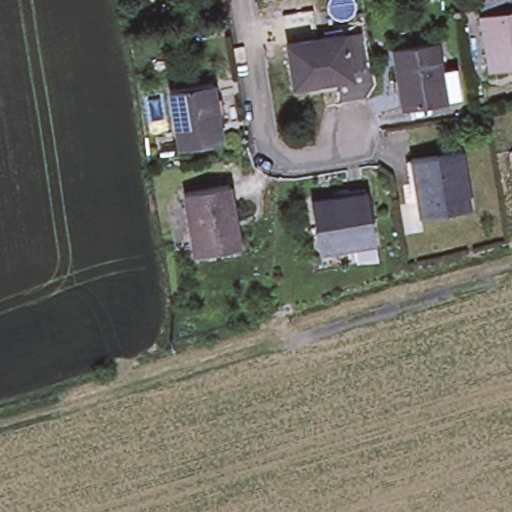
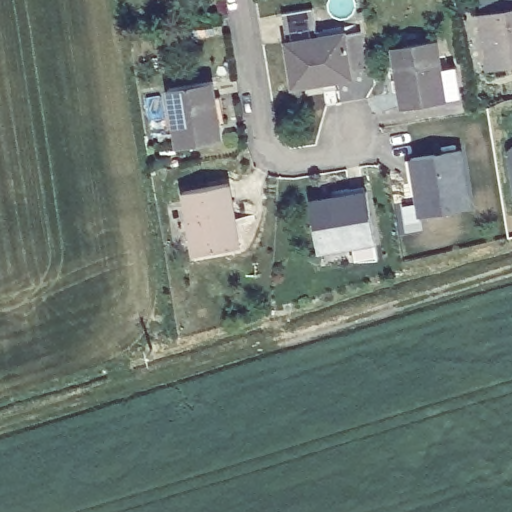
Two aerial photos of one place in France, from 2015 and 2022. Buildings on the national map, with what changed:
unchanged [(481,15),(482,15),(479,0),(512,0),(512,68),(489,71),(481,15)]
unchanged [(341,75),(284,84),(276,41),(334,31),(350,29),(352,37),(356,60),(356,65),(341,68),(341,75)]
unchanged [(457,94),(442,97),(399,104),(389,45),(433,39),(437,66),(452,64),(457,94)]
unchanged [(222,142),(179,149),(170,91),(213,84),(222,142)]
unchanged [(470,208),(421,216),(416,185),(412,161),(416,161),(462,154),(470,208)]
unchanged [(237,248),(194,256),(184,194),(229,186),(236,221),(240,247),(237,248)]
unchanged [(353,256),(349,239),(316,245),(308,195),(339,189),(340,192),(363,188),(371,235),(374,252),(353,256)]

